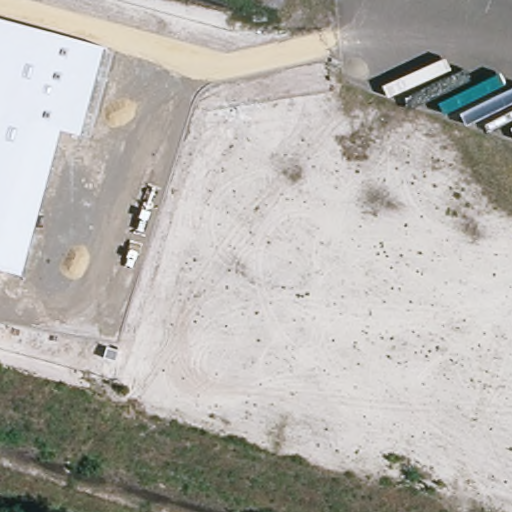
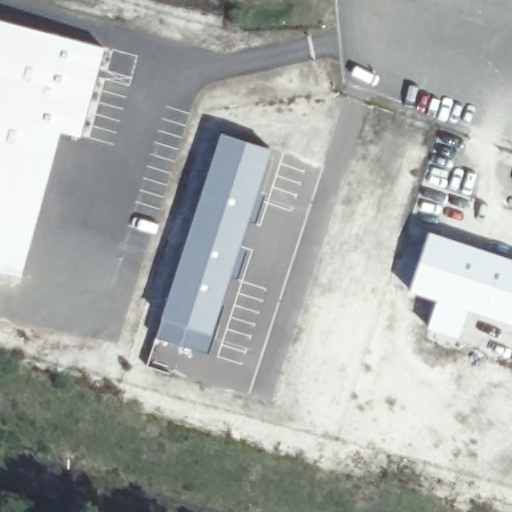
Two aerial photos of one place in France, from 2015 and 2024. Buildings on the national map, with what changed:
unchanged [(0,269),(0,18),(102,47),(81,135),(61,129),(21,275),(0,269)]
new [(233,276),(225,273),(216,300),(206,330),(158,315),(219,129),(266,145),(252,188),(261,191),(251,220),(243,217),(234,243),(243,247),(233,276)]
new [(512,257),(512,324),(467,310),(458,338),(426,326),(435,299),(408,290),(427,228),(512,257)]
new [(158,315),(206,330),(216,300),(221,301),(205,351),(152,334),(158,315)]

